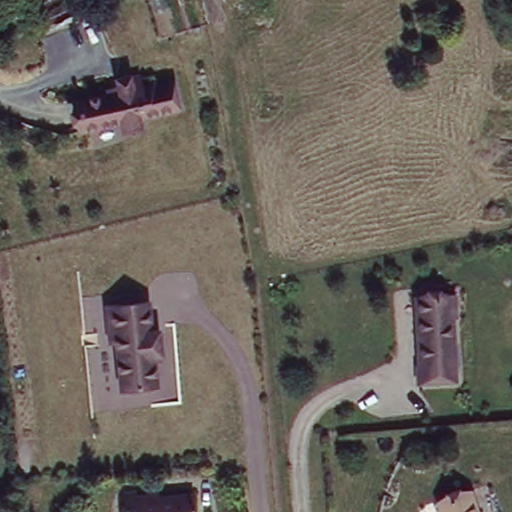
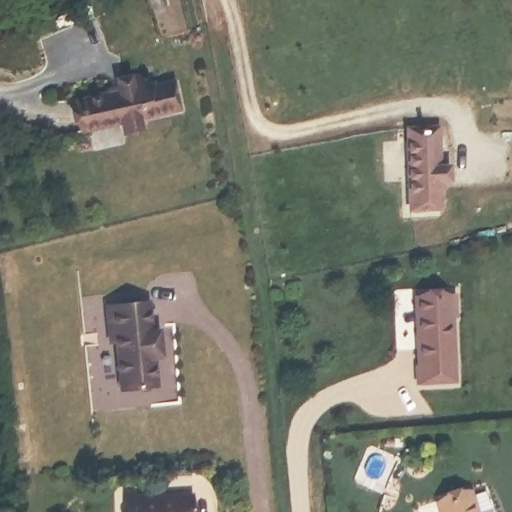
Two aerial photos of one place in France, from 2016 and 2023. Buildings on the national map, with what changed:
unchanged [(119,84),(116,71),(129,68),(129,70),(138,67),(142,83),(154,80),(155,82),(175,77),(182,102),(144,112),(146,121),(130,126),(127,117),(91,127),(81,94),(119,84)]
new [(446,205),(413,205),(407,126),(446,129),(446,205)]
unchanged [(452,288),(453,310),(450,310),(453,374),(417,376),(413,290),(452,288)]
unchanged [(154,326),(161,325),(165,348),(158,350),(162,377),(125,382),(119,340),(113,341),(111,331),(107,304),(149,297),(154,326)]
unchanged [(472,482),(482,510),(487,507),(489,512),(440,512),(435,496),(472,482)]
unchanged [(126,512),(125,498),(123,491),(134,490),(135,497),(189,490),(192,512),(126,512)]

